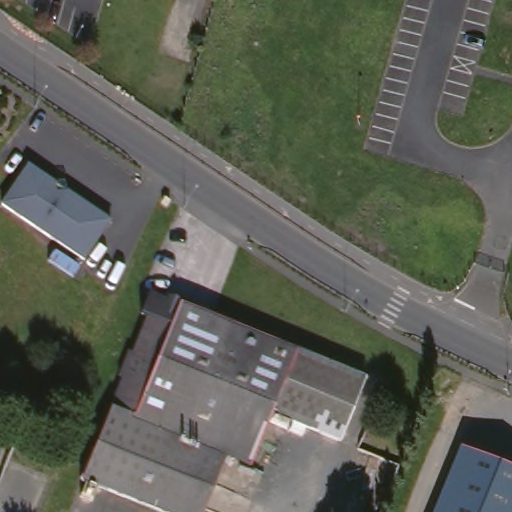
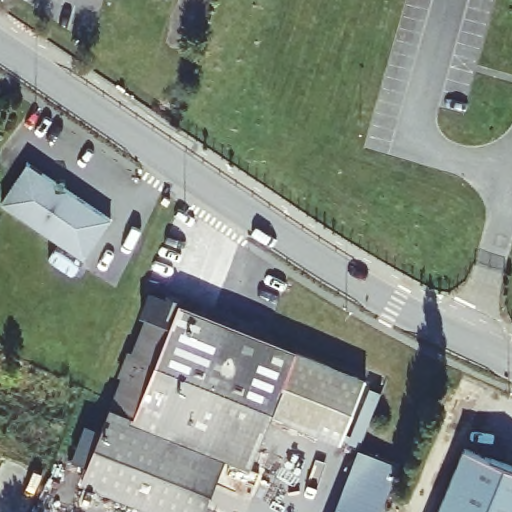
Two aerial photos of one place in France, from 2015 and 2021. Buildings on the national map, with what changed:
unchanged [(0,203),(0,202),(26,163),(109,218),(82,257),(0,203)]
unchanged [(205,512),(181,512),(86,474),(126,372),(123,371),(132,345),(137,347),(151,310),(145,308),(153,287),(168,293),(169,288),(184,294),(183,299),(298,347),(368,375),(344,435),(274,408),(254,457),(229,448),(205,512)]
unchanged [(440,512),(468,443),(512,462),(512,512),(440,512)]
new [(400,466),(382,512),(335,512),(358,449),(400,466)]

